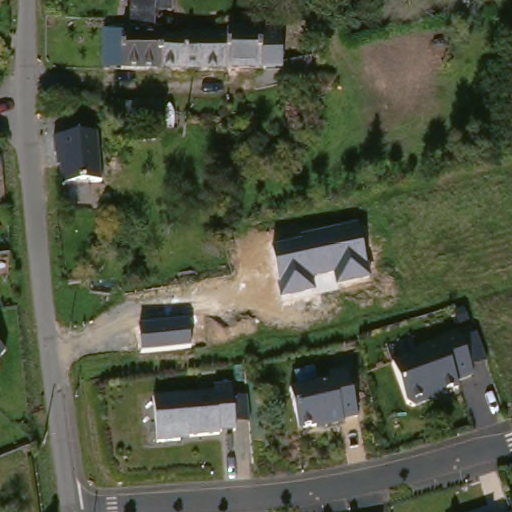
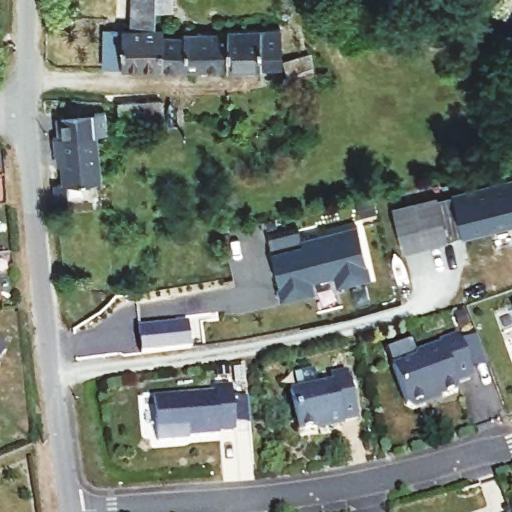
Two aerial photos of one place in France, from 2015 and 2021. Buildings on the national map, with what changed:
unchanged [(113,30),(122,30),(122,0),(162,0),(162,12),(146,12),(146,31),(154,31),(154,37),(154,69),(113,67),(96,66),(96,29),(113,30)]
unchanged [(269,32),(268,30),(283,30),(283,36),(269,36),(271,67),(300,59),(302,79),(271,87),(270,72),(251,72),(250,32),(269,32)]
unchanged [(216,32),(250,32),(251,72),(216,71),(216,36),(216,32)]
unchanged [(174,37),(174,34),(216,36),(216,71),(154,69),(154,37),(174,37)]
unchanged [(160,119),(119,120),(117,97),(158,96),(160,119)]
unchanged [(98,126),(103,161),(105,174),(68,178),(64,147),(59,147),(57,130),(98,126)]
new [(512,222),(463,234),(453,194),(512,179),(512,222)]
new [(437,199),(447,240),(406,250),(396,209),(437,199)]
unchanged [(270,252),(301,244),(300,239),(358,225),(371,280),(280,302),(270,252)]
unchanged [(139,353),(137,327),(187,320),(191,348),(139,353)]
unchanged [(461,381),(463,387),(445,394),(444,392),(433,396),(430,402),(418,407),(411,403),(397,363),(419,356),(422,349),(445,341),(444,338),(463,332),(465,339),(481,333),(492,362),(491,362),(476,367),(478,375),(461,381)]
unchanged [(5,344),(0,350),(0,340),(5,344)]
unchanged [(290,394),(332,384),(331,377),(347,373),(358,421),(343,425),(344,427),(327,431),(326,428),(300,435),(290,394)]
unchanged [(217,440),(217,442),(177,446),(178,448),(155,451),(151,401),(212,395),(212,389),(229,387),(230,402),(245,401),(247,430),(232,431),(233,438),(217,440)]

